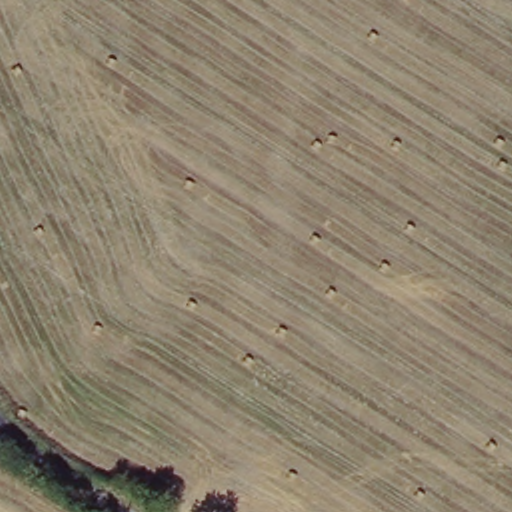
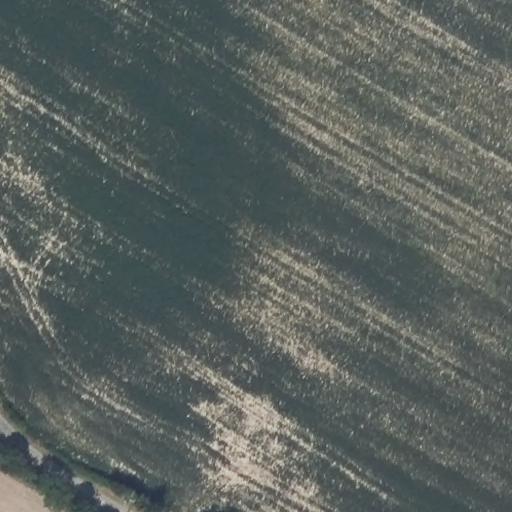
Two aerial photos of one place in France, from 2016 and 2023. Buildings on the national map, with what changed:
[]

